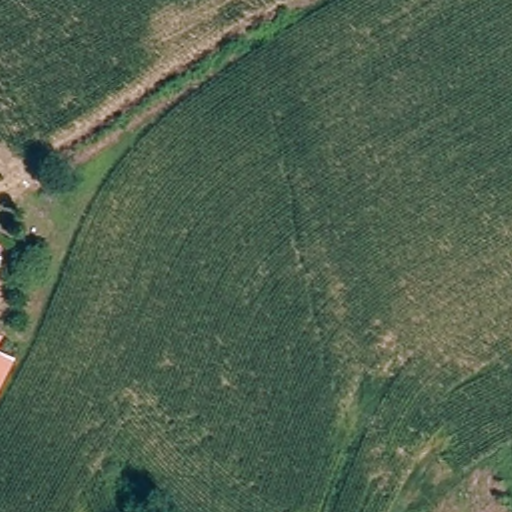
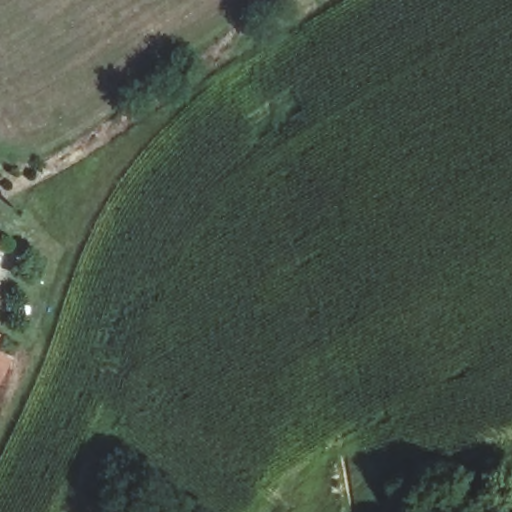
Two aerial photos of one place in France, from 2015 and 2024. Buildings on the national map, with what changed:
unchanged [(5,238),(0,248),(0,236),(5,238)]

